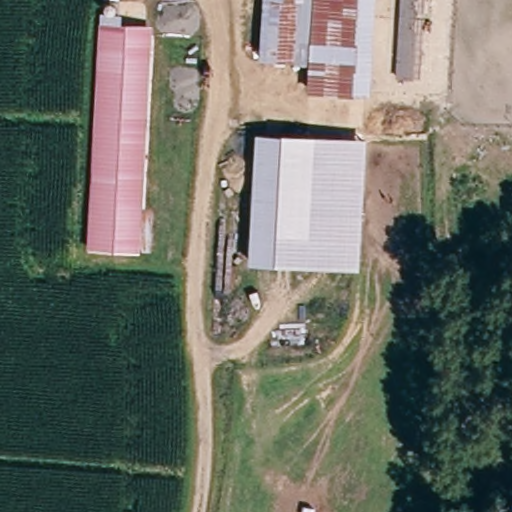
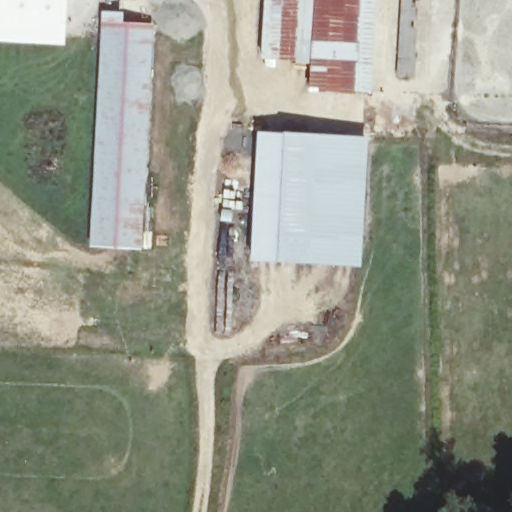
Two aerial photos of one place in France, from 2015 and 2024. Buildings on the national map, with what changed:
new [(0,41),(0,0),(67,0),(64,45),(0,41)]
unchanged [(267,2),(267,0),(316,0),(316,6),(267,2)]
unchanged [(365,87),(312,87),(313,58),(316,6),(316,0),(369,0),(365,87)]
unchanged [(401,0),(432,0),(427,76),(398,76),(401,0)]
unchanged [(102,1),(124,2),(123,22),(156,24),(147,248),(91,249),(102,1)]
unchanged [(267,2),(316,6),(313,58),(265,58),(267,2)]
unchanged [(257,130),(317,132),(311,267),(249,261),(257,130)]
unchanged [(367,137),(362,266),(311,267),(317,132),(367,137)]

